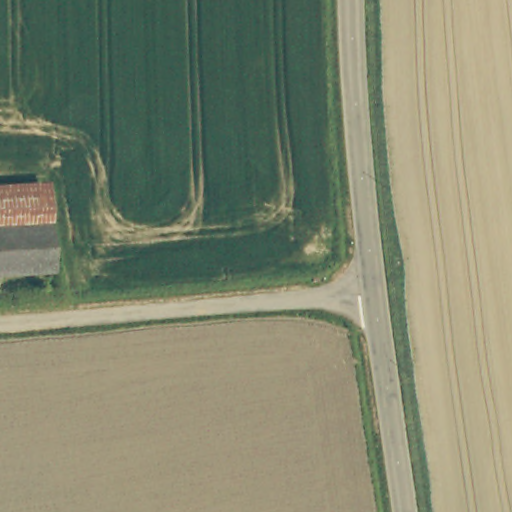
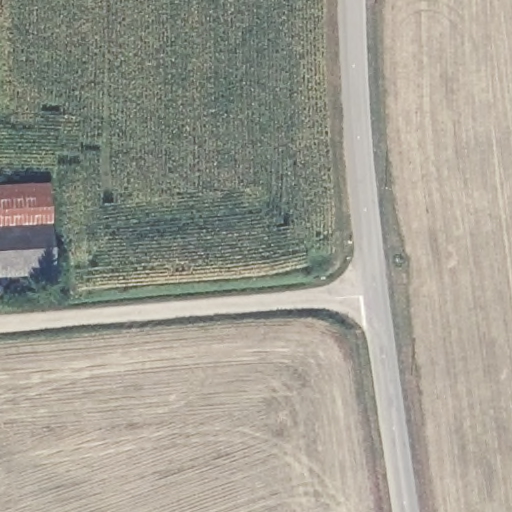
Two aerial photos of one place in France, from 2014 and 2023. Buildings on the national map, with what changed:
unchanged [(3,189),(43,187),(44,219),(46,269),(0,272),(0,190),(3,189)]

